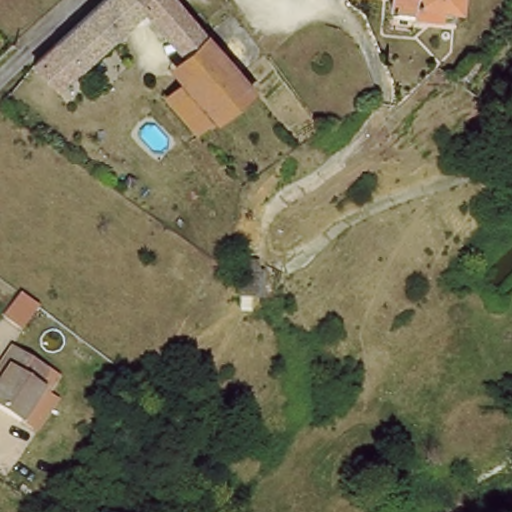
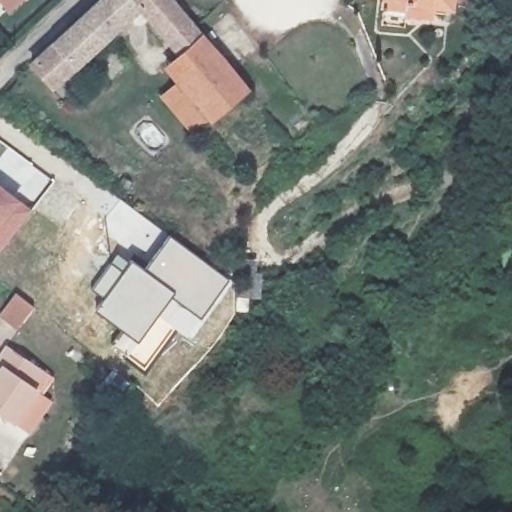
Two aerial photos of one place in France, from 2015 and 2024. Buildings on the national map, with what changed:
new [(0,0),(28,0),(12,14),(0,0)]
unchanged [(256,87),(197,140),(158,99),(180,82),(170,69),(182,56),(141,14),(60,93),(28,65),(103,0),(178,0),(256,87)]
unchanged [(453,7),(436,6),(435,15),(381,8),(382,0),(453,0),(453,7)]
new [(34,210),(0,252),(0,184),(22,201),(34,210)]
new [(169,235),(233,280),(190,340),(157,316),(137,343),(95,310),(103,297),(92,289),(117,252),(132,260),(143,268),(169,235)]
new [(35,307),(17,330),(0,317),(0,312),(15,292),(35,307)]
unchanged [(0,372),(0,366),(10,352),(42,374),(30,389),(39,396),(16,427),(0,417),(0,380),(3,374),(0,372)]
unchanged [(81,398),(102,370),(123,387),(102,414),(81,398)]

